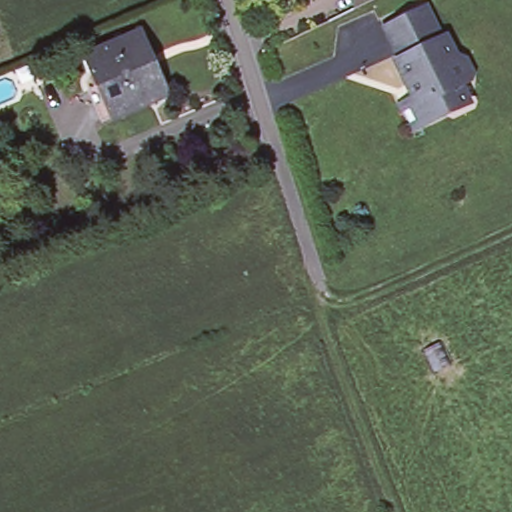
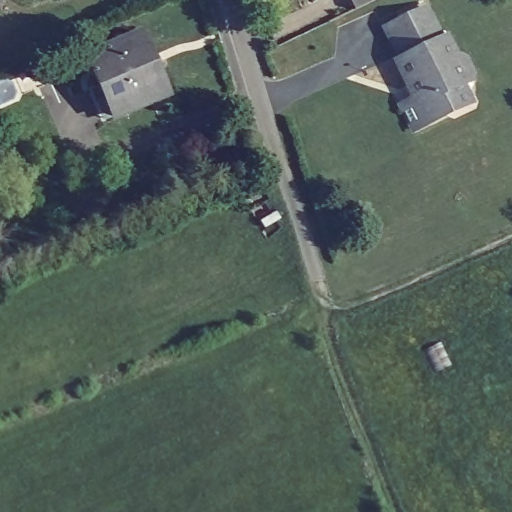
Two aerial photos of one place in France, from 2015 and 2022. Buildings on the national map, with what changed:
unchanged [(347,0),(371,0),(352,9),(347,0)]
unchanged [(379,37),(419,17),(435,49),(394,68),(379,37)]
unchanged [(83,56),(138,33),(145,49),(90,72),(83,56)]
unchanged [(439,123),(407,139),(395,115),(409,108),(390,70),(394,68),(435,49),(440,46),(450,68),(453,66),(460,70),(466,83),(463,91),(455,95),(460,103),(463,111),(439,123)]
unchanged [(86,88),(95,84),(90,72),(145,49),(147,55),(153,52),(167,84),(170,91),(163,94),(109,116),(100,120),(97,114),(86,88)]
unchanged [(425,354),(439,343),(451,363),(433,373),(425,354)]

